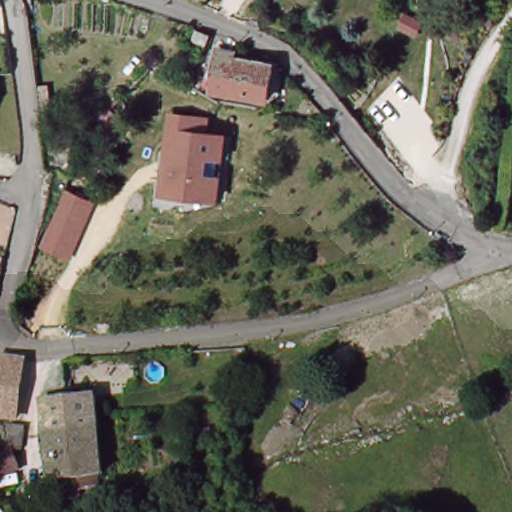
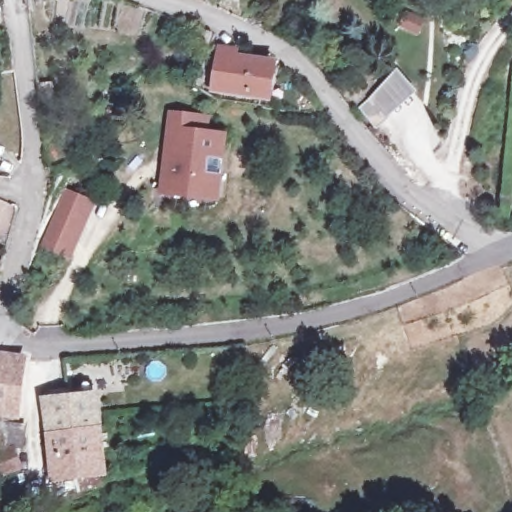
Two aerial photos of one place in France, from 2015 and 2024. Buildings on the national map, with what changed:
unchanged [(197,29),(208,33),(205,42),(193,38),(197,29)]
unchanged [(236,50),(236,57),(274,62),(268,100),(213,92),(220,48),(236,50)]
new [(395,69),(415,91),(375,129),(358,108),(395,69)]
unchanged [(93,123),(110,107),(126,123),(110,140),(109,138),(98,149),(82,134),(87,130),(93,123)]
unchanged [(208,114),(207,132),(226,133),(221,200),(195,200),(192,197),(158,194),(172,111),(208,114)]
unchanged [(93,203),(70,257),(40,245),(65,190),(93,203)]
unchanged [(22,361),(15,419),(0,416),(0,357),(11,359),(22,361)]
unchanged [(47,432),(43,399),(92,394),(95,416),(97,427),(47,432)]
unchanged [(21,450),(7,448),(10,431),(10,426),(25,429),(23,434),(21,450)]
unchanged [(102,473),(53,480),(47,432),(97,427),(102,473)]
unchanged [(10,450),(17,467),(0,472),(0,454),(10,450)]

